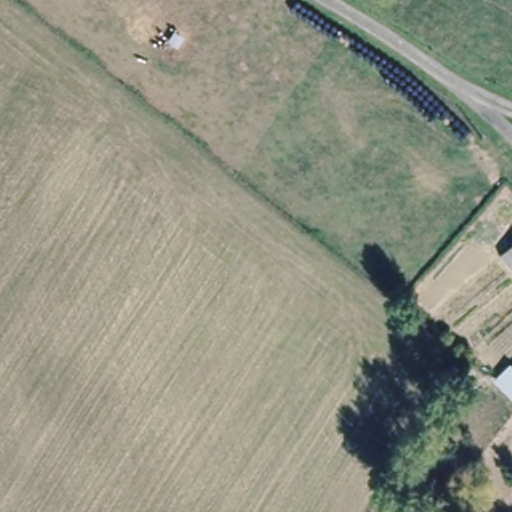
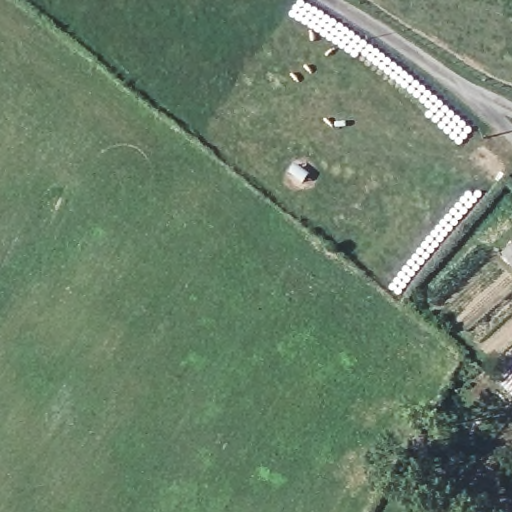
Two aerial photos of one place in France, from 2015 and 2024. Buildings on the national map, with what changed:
unchanged [(510,257),(512,256),(512,259),(510,257)]
unchanged [(501,386),(512,374),(512,396),(501,386)]

